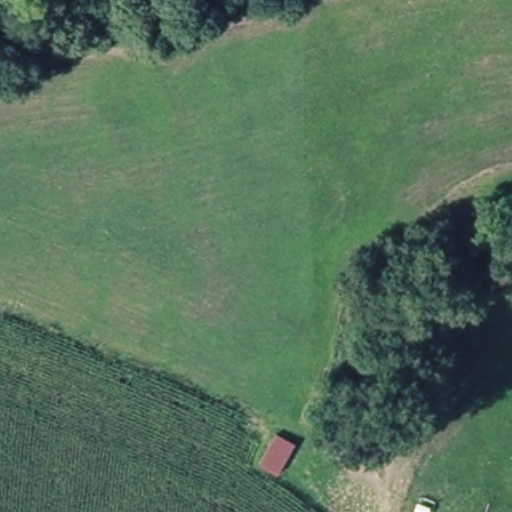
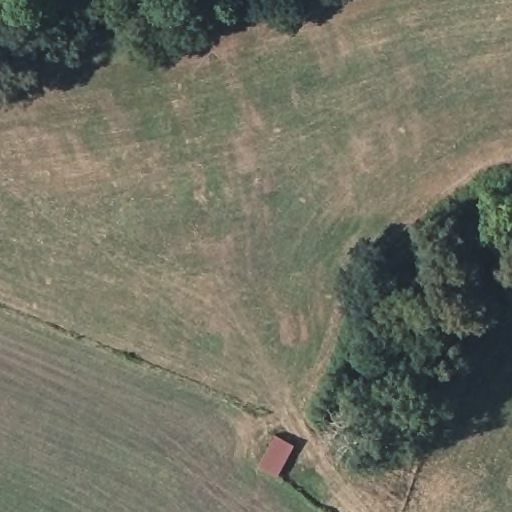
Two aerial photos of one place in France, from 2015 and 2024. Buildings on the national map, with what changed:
unchanged [(281,434),(298,447),(277,478),(258,462),(281,434)]

